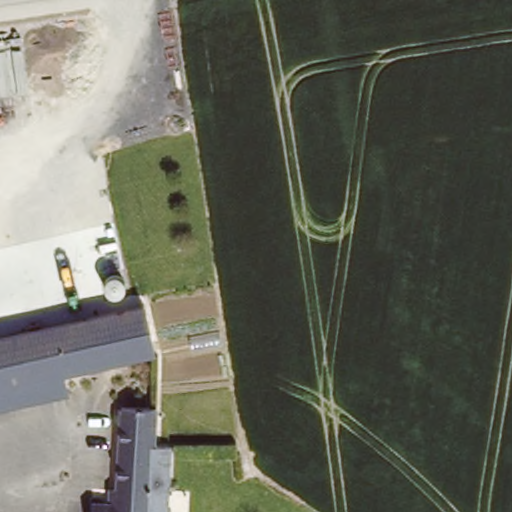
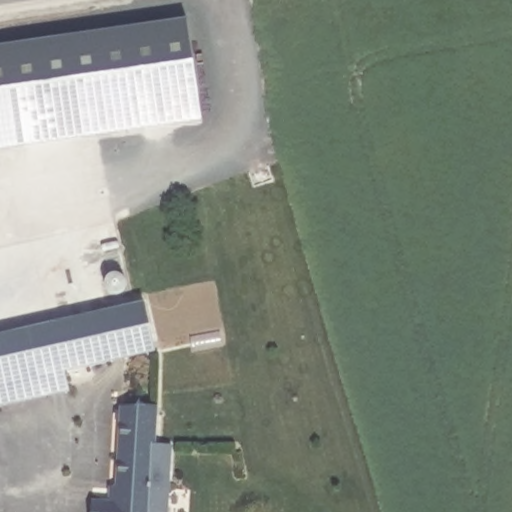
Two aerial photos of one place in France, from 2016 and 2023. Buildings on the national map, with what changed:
new [(201,123),(0,149),(0,46),(186,20),(201,123)]
unchanged [(125,358),(92,367),(95,379),(71,385),(72,392),(0,410),(0,336),(148,300),(159,346),(160,382),(126,382),(125,358)]
unchanged [(112,497),(114,484),(120,484),(126,382),(160,382),(157,447),(174,447),(171,512),(98,512),(99,497),(112,497)]

